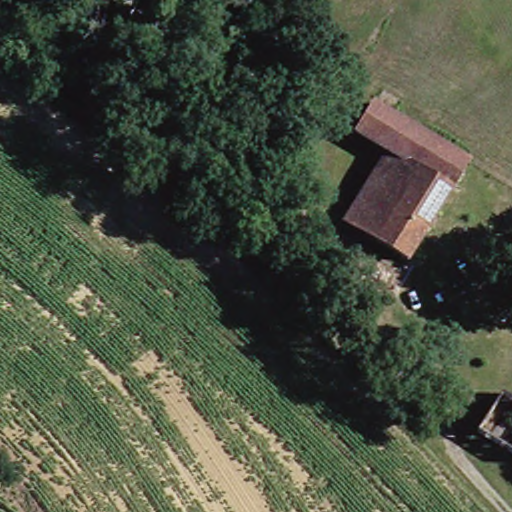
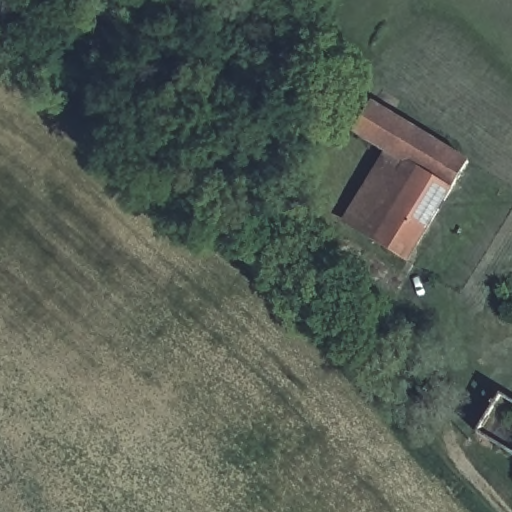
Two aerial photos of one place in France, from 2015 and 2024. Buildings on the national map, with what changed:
unchanged [(362,133),(378,104),(474,162),(412,261),(381,241),(422,172),(394,154),(362,133)]
unchanged [(505,142),(512,135),(512,150),(511,151),(505,142)]
unchanged [(381,241),(351,222),(394,154),(422,172),(381,241)]

